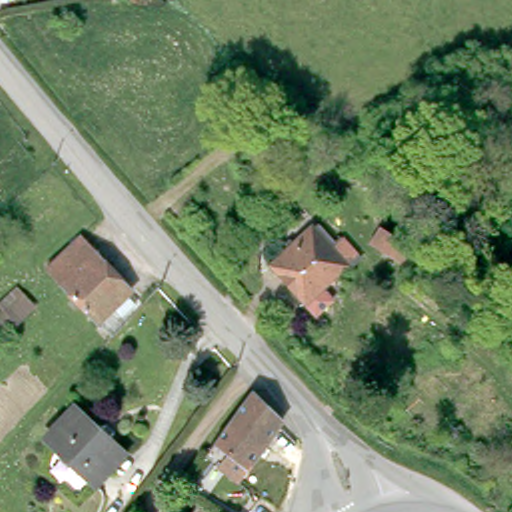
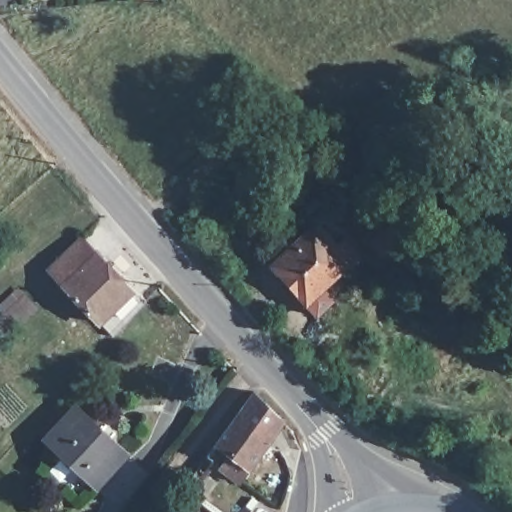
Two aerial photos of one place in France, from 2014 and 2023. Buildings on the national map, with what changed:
unchanged [(344,232),(360,250),(349,260),(325,282),(336,295),(319,310),(272,259),(315,221),(332,242),(344,232)]
unchanged [(411,265),(366,240),(374,222),(422,248),(411,265)]
unchanged [(50,263),(82,231),(146,297),(142,301),(115,331),(50,263)]
unchanged [(255,390),(295,428),(299,443),(287,459),(265,443),(240,481),(208,455),(255,390)]
unchanged [(87,475),(37,429),(67,396),(118,442),(87,475)]

